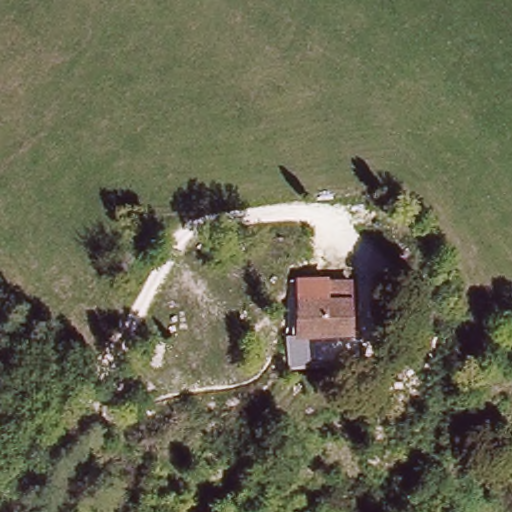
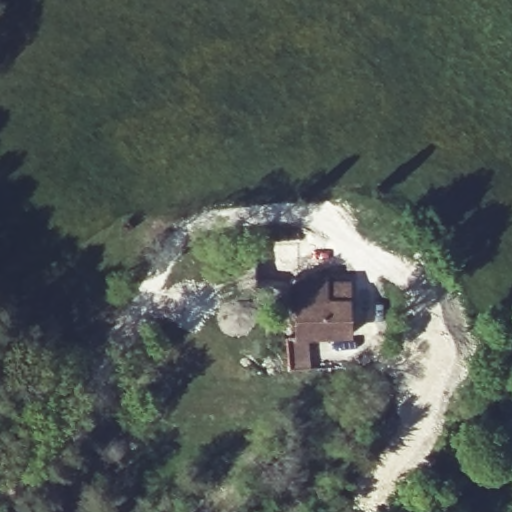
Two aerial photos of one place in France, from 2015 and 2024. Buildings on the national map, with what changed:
unchanged [(300,306),(299,276),(330,275),(329,285),(357,286),(357,336),(308,335),(300,333),(300,306)]

